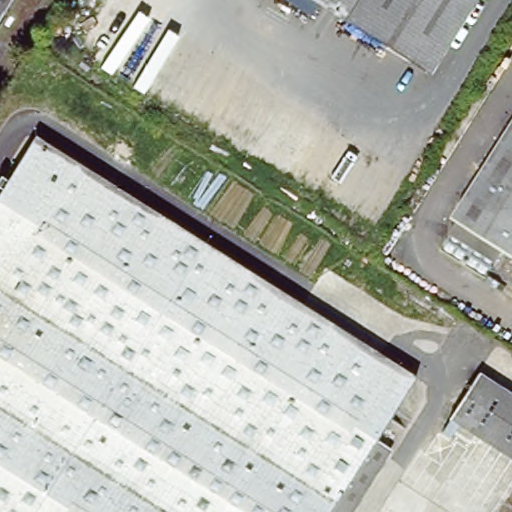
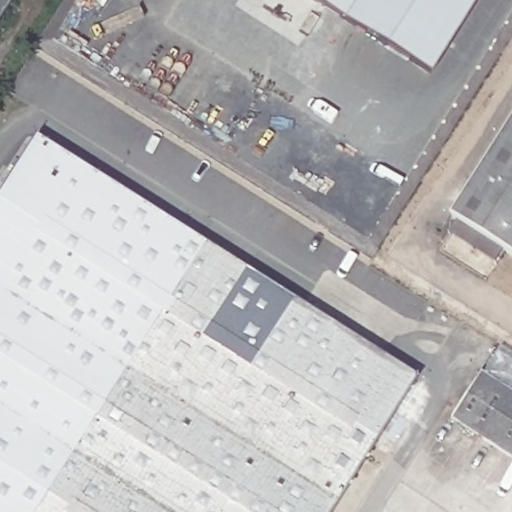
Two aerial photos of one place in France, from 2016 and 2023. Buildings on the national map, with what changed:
unchanged [(0,16),(0,0),(11,0),(0,16)]
unchanged [(309,0),(480,0),(430,77),(309,0)]
unchanged [(512,125),(512,245),(457,211),(512,125)]
unchanged [(415,373),(377,436),(390,445),(349,512),(0,512),(0,190),(35,133),(415,373)]
unchanged [(450,417),(478,372),(512,392),(512,456),(450,417)]

